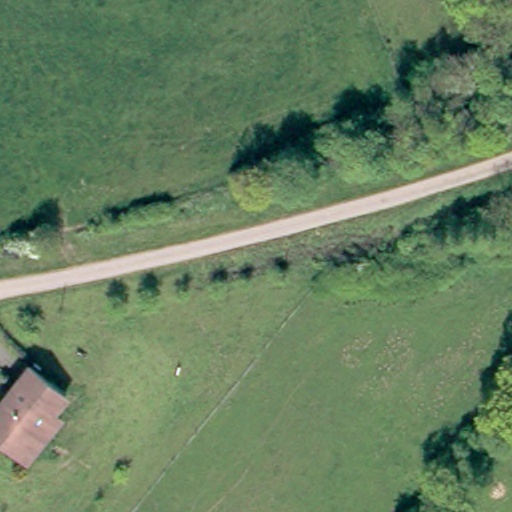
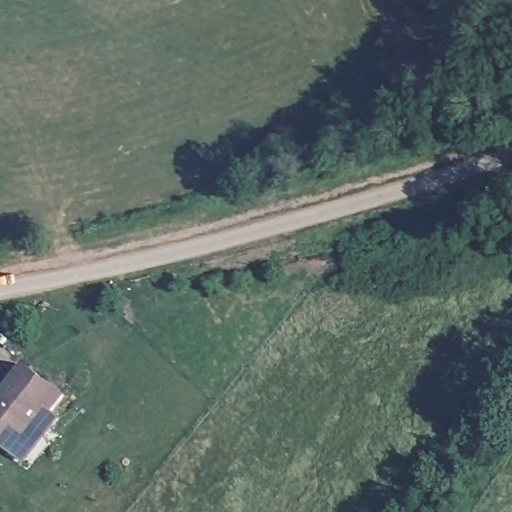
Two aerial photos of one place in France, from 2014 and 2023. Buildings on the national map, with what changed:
unchanged [(67,388),(53,406),(62,410),(27,455),(0,437),(0,388),(23,360),(67,388)]

